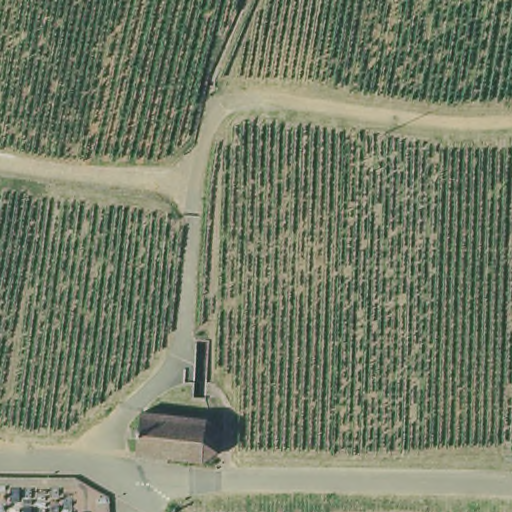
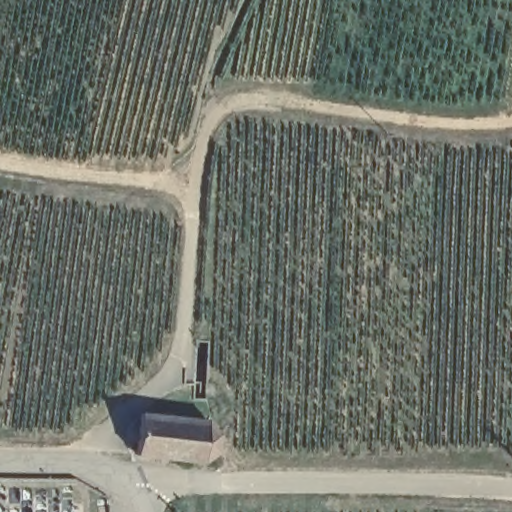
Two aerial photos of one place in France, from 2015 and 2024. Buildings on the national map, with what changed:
unchanged [(158,461),(158,458),(158,455),(141,453),(141,438),(133,438),(134,429),(142,430),(143,412),(210,416),(224,428),(223,445),(207,457),(167,455),(167,459),(167,462),(158,461)]

